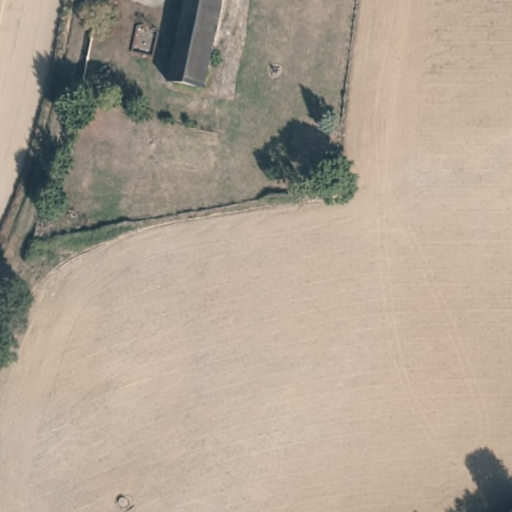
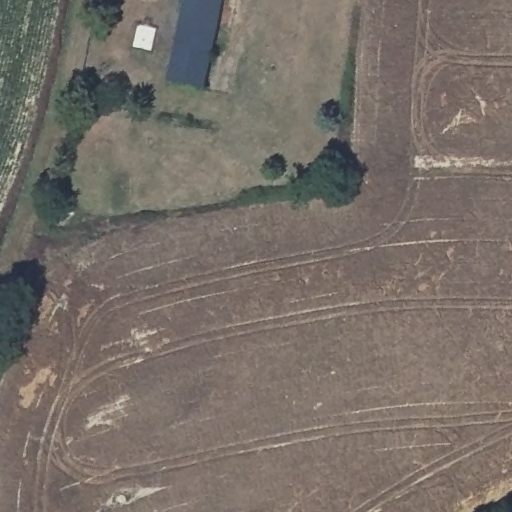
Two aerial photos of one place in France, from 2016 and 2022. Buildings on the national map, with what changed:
unchanged [(210,86),(182,80),(178,79),(191,0),(227,0),(210,86)]

